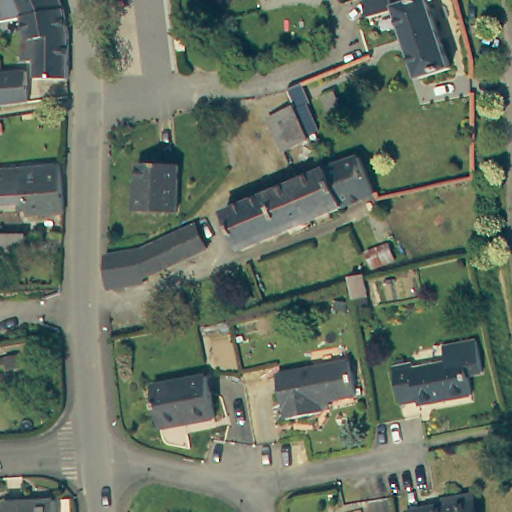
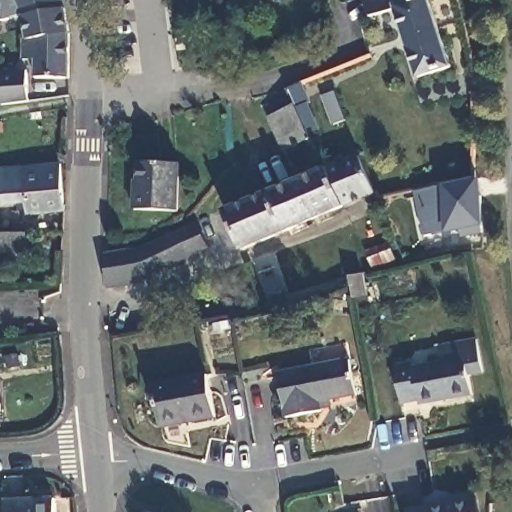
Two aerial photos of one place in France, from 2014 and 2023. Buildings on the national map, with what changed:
unchanged [(26,60),(27,39),(31,39),(26,17),(4,21),(6,0),(65,0),(68,7),(73,34),(73,78),(39,77),(39,60),(26,60)]
unchanged [(423,78),(401,10),(375,17),(374,15),(370,5),(368,0),(434,0),(456,67),(423,78)]
unchanged [(185,49),(178,50),(176,32),(183,31),(185,49)]
unchanged [(211,37),(216,40),(219,45),(221,50),(222,55),(221,61),(218,65),(214,70),(209,72),(201,72),(195,71),(191,68),(187,64),(185,59),(185,52),(186,47),(189,42),(193,39),(198,36),(203,35),(206,35),(211,37)]
unchanged [(0,94),(0,73),(31,71),(33,101),(2,105),(1,94),(0,94)]
unchanged [(345,121),(332,125),(322,96),(335,92),(345,121)]
unchanged [(319,138),(318,139),(291,150),(277,118),(306,105),(319,138)]
unchanged [(358,156),(375,192),(344,206),(326,167),(358,156)]
unchanged [(143,182),(144,162),(183,164),(182,211),(139,210),(140,193),(140,182),(143,182)]
unchanged [(26,201),(0,203),(0,169),(60,164),(64,210),(27,214),(26,201)]
unchanged [(321,170),(326,167),(344,206),(313,219),(296,180),(321,170)]
new [(446,186),(481,179),(482,226),(482,235),(461,238),(459,230),(445,232),(424,236),(415,191),(446,186)]
unchanged [(268,192),(280,187),(296,180),(313,219),(284,231),(268,192)]
unchanged [(245,248),(241,250),(224,211),(268,192),(284,231),(245,248)]
unchanged [(140,249),(196,224),(207,247),(143,276),(140,249)]
unchanged [(0,235),(26,235),(26,253),(0,253),(0,235)]
unchanged [(394,259),(371,267),(365,251),(388,243),(394,259)]
unchanged [(143,281),(107,286),(104,255),(106,254),(140,249),(143,276),(143,278),(143,281)]
unchanged [(362,274),(366,295),(352,298),(348,277),(362,274)]
unchanged [(418,400),(401,404),(393,366),(412,363),(413,368),(446,362),(443,346),(476,340),(482,372),(467,375),(471,395),(442,400),(419,405),(418,400)]
unchanged [(319,408),(320,411),(286,417),(278,374),(349,360),(356,395),(328,400),(330,406),(319,408)]
unchanged [(215,417),(161,427),(153,385),(207,375),(215,417)]
unchanged [(406,511),(443,503),(443,499),(474,493),(475,497),(478,512),(407,512),(406,511)]
unchanged [(56,512),(5,512),(5,502),(55,499),(56,512)]

